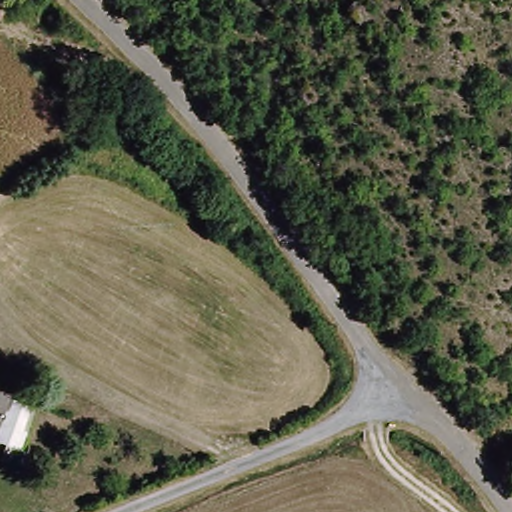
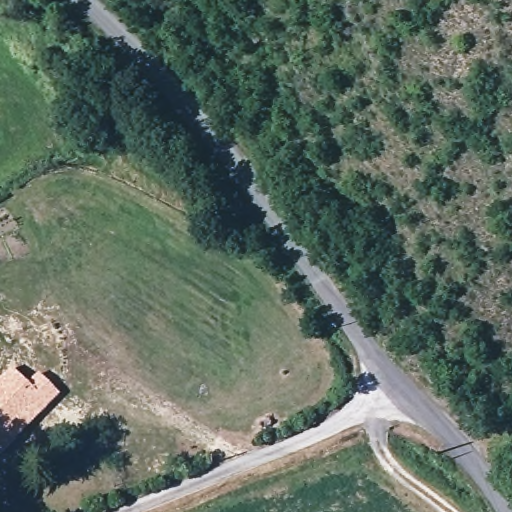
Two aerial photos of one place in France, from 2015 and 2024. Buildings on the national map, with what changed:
new [(12,368),(29,383),(39,373),(60,393),(0,457),(0,380),(12,368)]
demolished [(0,434),(0,418),(12,422),(17,408),(40,416),(31,444),(9,437),(0,434)]

